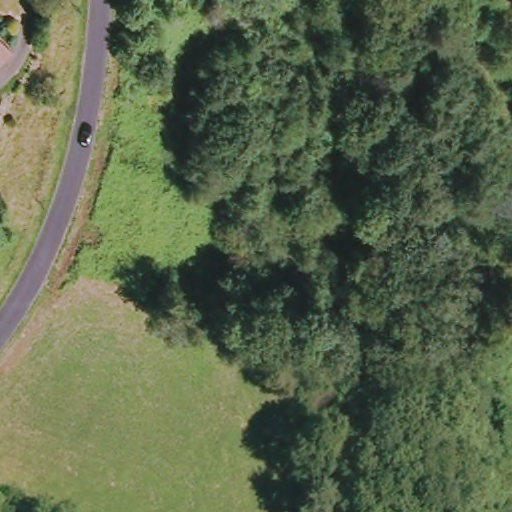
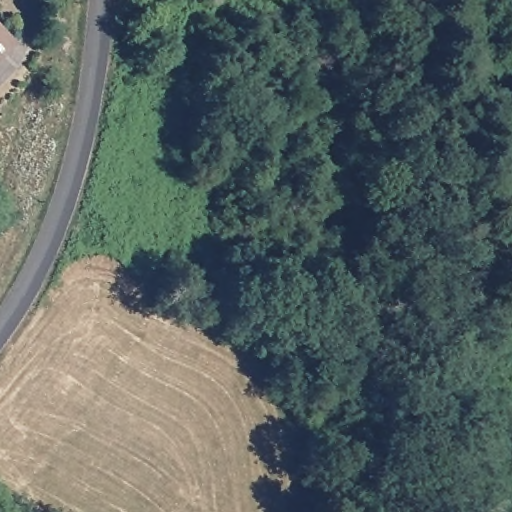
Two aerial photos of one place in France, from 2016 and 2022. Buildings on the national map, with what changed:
unchanged [(0,62),(0,23),(19,43),(0,62)]

